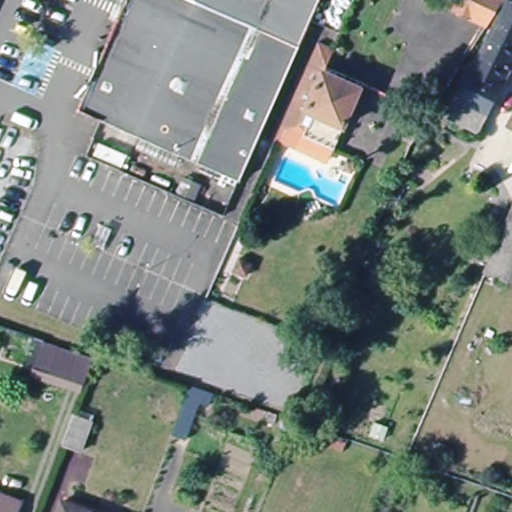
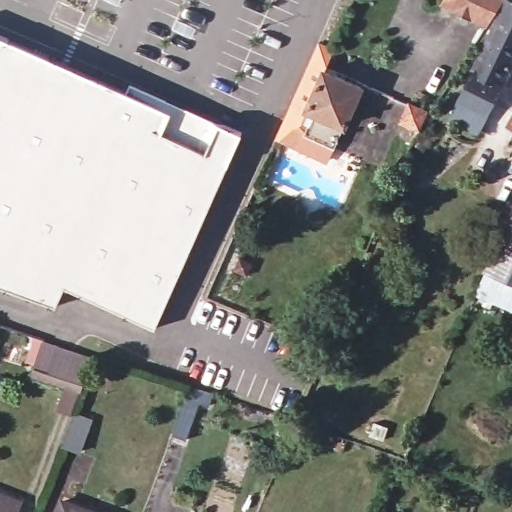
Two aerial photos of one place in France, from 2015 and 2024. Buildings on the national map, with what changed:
demolished [(122,22),(132,0),(324,0),(246,180),(85,109),(95,85),(104,64),(122,22)]
unchanged [(492,20),(450,0),(506,0),(492,20)]
unchanged [(465,93),(508,0),(512,0),(512,68),(505,81),(493,105),(492,107),(483,125),(456,110),(465,93)]
new [(56,307),(0,287),(0,37),(126,92),(130,83),(221,124),(243,133),(156,328),(64,288),(56,307)]
unchanged [(325,70),(362,86),(335,148),(283,125),(320,42),(333,48),(334,49),(325,70)]
unchanged [(432,113),(422,129),(403,121),(410,103),(432,113)]
unchanged [(512,120),(512,128),(509,126),(512,120)]
unchanged [(512,211),(512,282),(487,271),(512,211)]
unchanged [(247,275),(235,270),(240,258),(253,263),(247,275)]
unchanged [(33,369),(34,363),(43,337),(93,354),(84,380),(82,385),(33,369)]
unchanged [(195,391),(219,399),(214,410),(206,407),(192,444),(178,439),(195,391)]
unchanged [(98,421),(87,451),(68,443),(72,432),(78,415),(98,421)]
unchanged [(0,512),(0,489),(20,497),(14,512),(0,512)]
unchanged [(98,512),(64,512),(68,500),(98,512)]

